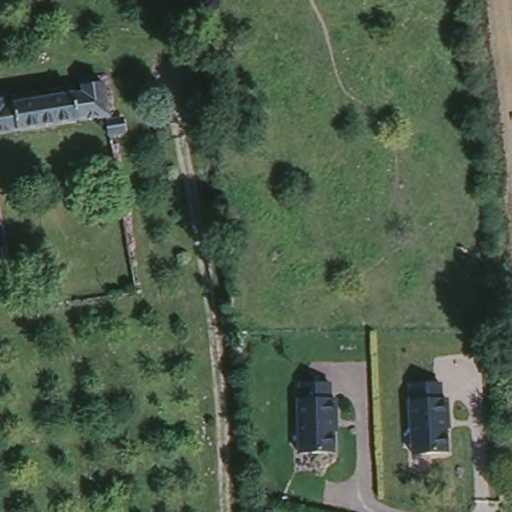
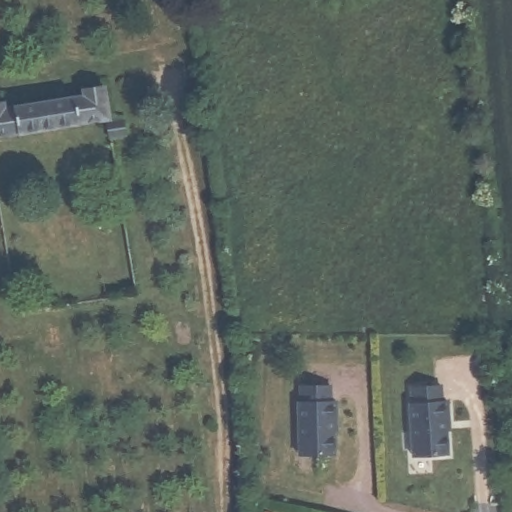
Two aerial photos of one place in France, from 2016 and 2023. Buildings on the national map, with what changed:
unchanged [(79,95),(77,85),(96,81),(104,119),(0,136),(0,103),(1,109),(79,95)]
unchanged [(106,132),(104,119),(119,117),(120,131),(106,132)]
unchanged [(334,382),(334,400),(337,400),(339,455),(302,456),(299,400),(304,400),(303,385),(334,382)]
unchanged [(446,384),(447,401),(449,401),(451,455),(413,457),(409,401),(413,400),(413,386),(446,384)]

